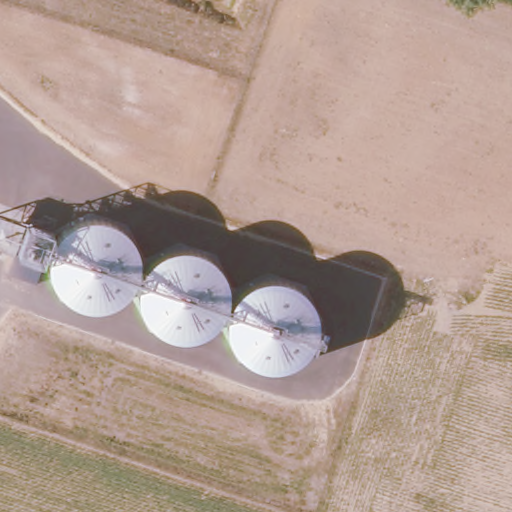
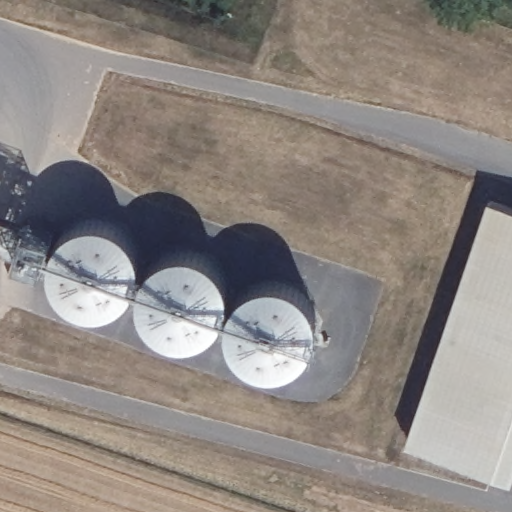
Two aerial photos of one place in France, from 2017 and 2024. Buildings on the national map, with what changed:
new [(512,210),(512,419),(493,475),(408,445),(493,203),(512,210)]
unchanged [(15,256),(0,250),(0,216),(25,226),(15,256)]
unchanged [(119,305),(114,307),(109,309),(103,311),(98,312),(93,312),(87,311),(81,309),(76,307),(71,305),(67,301),(63,297),(59,293),(56,288),(53,283),(52,278),(51,272),(50,267),(51,261),(52,256),(53,251),(56,245),(59,241),(63,236),(66,232),(71,229),(76,226),(81,224),(86,222),(93,222),(98,222),(103,222),(109,224),(114,226),(119,229),(123,232),(128,236),(131,240),(134,245),(137,250),(138,256),(139,261),(140,267),(139,272),(138,277),(137,283),(134,288),(132,292),(128,297),(123,302),(119,305)]
unchanged [(38,287),(8,277),(27,224),(55,234),(38,287)]
unchanged [(169,255),(175,254),(181,253),(186,252),(192,254),(198,255),(203,257),(208,260),(213,263),(216,267),(220,271),(223,276),(226,281),(228,287),(228,292),(229,297),(228,303),(228,308),(226,314),(223,320),(221,324),(217,328),(213,332),(208,336),(203,338),(198,341),(193,342),(187,342),(181,342),(176,342),(170,341),(165,338),(160,336),(155,332),(151,328),(148,325),(144,320),(142,315),(140,309),(139,303),(139,298),(139,292),(140,287),(142,282),(144,276),(147,272),(151,267),(155,263),(159,260),(163,257),(169,255)]
unchanged [(306,357),(302,362),(298,365),(293,368),(288,370),(282,372),(276,372),(271,372),(266,372),(260,371),(254,369),(249,367),(245,363),(241,360),(237,356),(234,351),(231,346),(229,341),(228,335),(228,330),(228,324),(228,318),(230,313),(233,308),(236,303),(238,298),(243,295),(247,291),(252,288),(257,286),(263,285),(268,283),(274,283),(279,284),(284,285),(290,287),(295,290),(299,293),(304,297),(308,301),(311,306),(313,311),(315,316),(316,321),(317,327),(316,332),(316,338),(314,343),(312,348),(309,353),(306,357)]
new [(493,475),(512,419),(512,472),(509,481),(493,475)]

